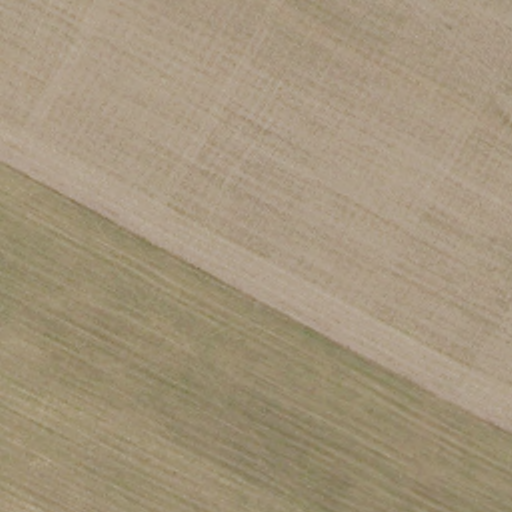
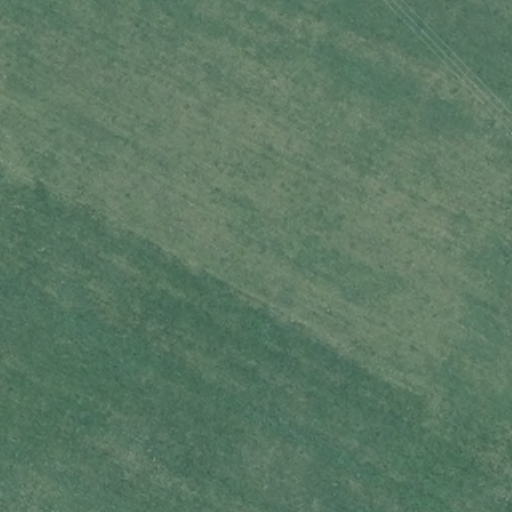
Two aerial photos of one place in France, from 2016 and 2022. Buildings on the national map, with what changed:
[]

